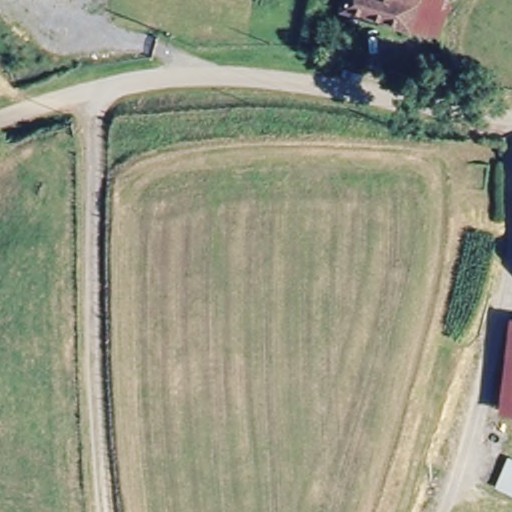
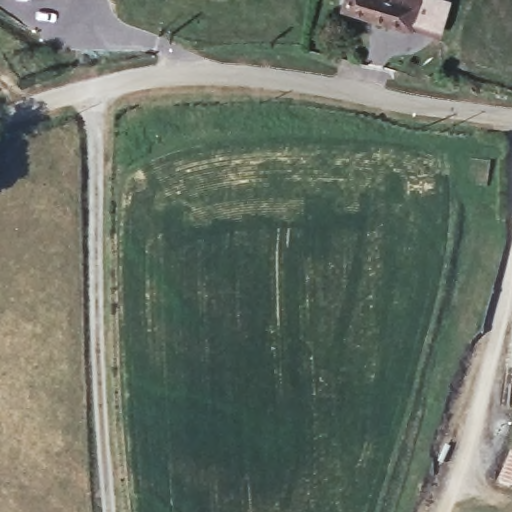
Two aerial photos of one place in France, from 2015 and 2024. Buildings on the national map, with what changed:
unchanged [(356,0),(429,0),(423,28),(355,7),(356,0)]
unchanged [(507,401),(512,375),(512,402),(507,401)]
unchanged [(498,483),(512,455),(512,491),(498,483)]

